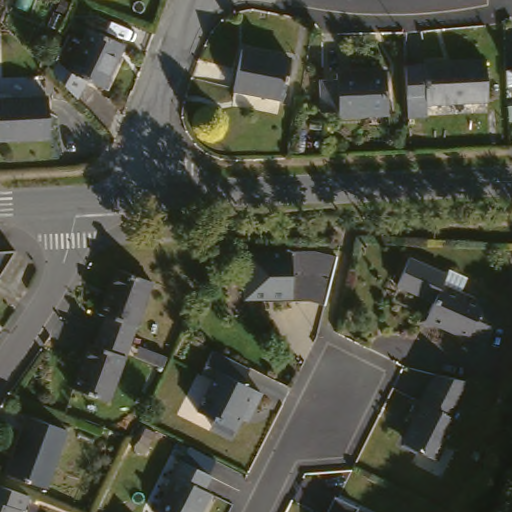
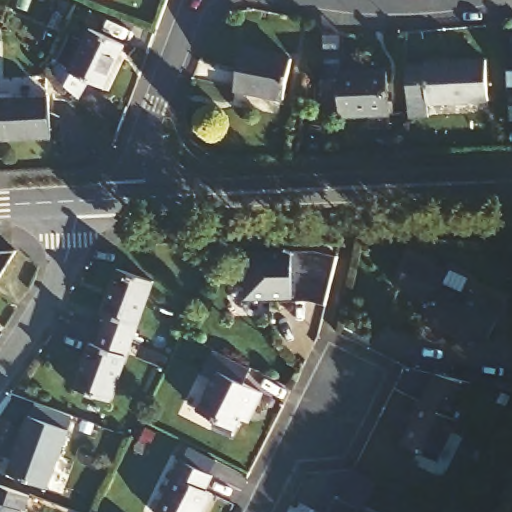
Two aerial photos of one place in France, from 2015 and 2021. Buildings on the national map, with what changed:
unchanged [(134,38),(111,84),(97,77),(86,97),(56,70),(62,58),(76,64),(99,20),(134,38)]
unchanged [(245,50),(294,58),(290,96),(239,91),(245,50)]
unchanged [(490,59),(490,102),(432,105),(434,116),(410,119),(404,66),(427,64),(490,59)]
unchanged [(390,74),(393,116),(344,120),(343,115),(331,116),(331,84),(341,84),(341,78),(390,74)]
unchanged [(39,91),(46,136),(10,141),(2,95),(39,91)]
unchanged [(335,281),(331,296),(314,292),(296,293),(296,297),(250,298),(249,253),(318,251),(341,256),(335,281)]
unchanged [(0,279),(0,254),(14,254),(0,279)]
unchanged [(451,272),(447,281),(503,309),(488,342),(471,334),(470,337),(429,317),(437,299),(401,281),(415,254),(451,272)]
unchanged [(107,317),(101,313),(120,266),(159,281),(136,339),(103,327),(107,317)]
unchanged [(136,339),(111,401),(71,385),(90,339),(97,342),(103,327),(136,339)]
unchanged [(250,369),(242,384),(260,393),(249,415),(242,412),(230,437),(210,427),(214,420),(196,411),(212,381),(200,375),(213,350),(250,369)]
unchanged [(463,384),(453,423),(458,424),(447,469),(412,460),(408,453),(412,433),(405,431),(408,413),(413,414),(423,374),(463,384)]
unchanged [(70,428),(52,488),(15,477),(32,416),(70,428)]
unchanged [(220,473),(212,489),(220,493),(210,512),(160,512),(171,490),(166,488),(175,470),(180,472),(187,457),(220,473)]
unchanged [(35,509),(30,506),(27,512),(0,512),(0,496),(1,497),(7,482),(40,495),(35,509)]
unchanged [(360,505),(375,512),(356,512),(360,505)]

